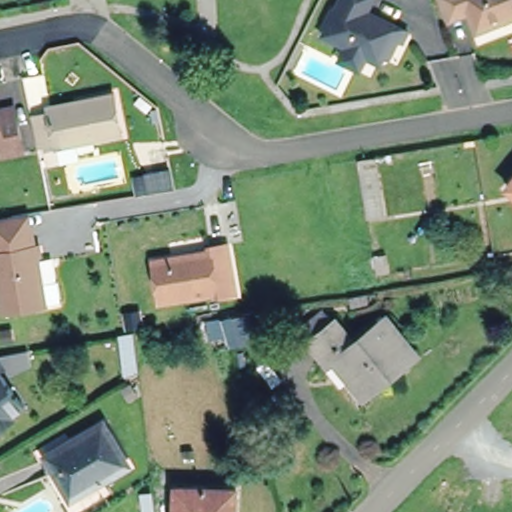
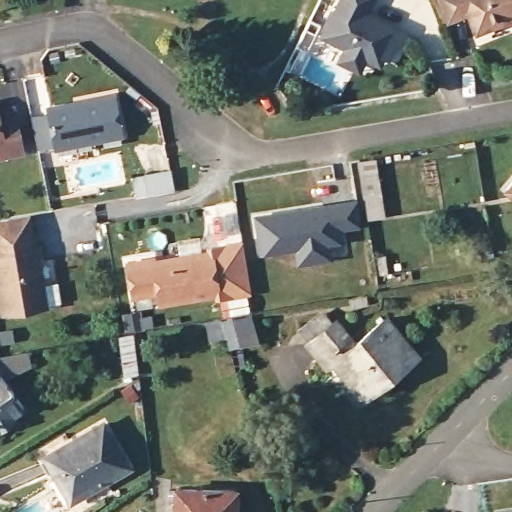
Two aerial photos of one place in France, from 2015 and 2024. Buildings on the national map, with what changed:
unchanged [(326,27),(329,20),(325,19),(334,1),(337,2),(338,0),(371,0),(369,3),(409,22),(402,37),(393,34),(387,50),(375,52),(361,45),(354,59),(330,46),(337,32),(326,27)]
unchanged [(470,15),(450,22),(442,0),(512,0),(512,19),(476,31),(470,15)]
unchanged [(49,103),(78,98),(114,91),(123,131),(44,146),(43,144),(38,145),(32,114),(50,110),(49,103)]
unchanged [(9,104),(18,150),(5,154),(0,155),(0,106),(9,104)]
unchanged [(367,217),(360,174),(357,156),(372,154),(375,171),(383,215),(367,217)]
unchanged [(135,172),(146,170),(172,165),(176,185),(150,190),(139,192),(135,172)]
unchanged [(512,181),(512,192),(506,187),(512,181)]
new [(359,199),(363,224),(343,226),(345,239),(330,241),(330,245),(298,250),(298,246),(263,252),(257,215),(359,199)]
unchanged [(9,310),(0,257),(0,219),(36,212),(39,229),(52,302),(9,310)]
unchanged [(212,245),(232,241),(241,291),(221,295),(220,291),(161,302),(154,260),(212,250),(212,245)]
unchanged [(335,323),(339,320),(357,341),(389,315),(422,355),(367,399),(336,361),(330,365),(311,343),(314,340),(304,328),(324,311),(335,323)]
unchanged [(227,347),(196,356),(185,323),(218,317),(227,347)]
unchanged [(132,332),(136,363),(119,365),(116,335),(126,333),(132,332)]
unchanged [(3,377),(1,380),(19,408),(6,416),(9,421),(0,428),(0,371),(3,377)]
unchanged [(57,479),(43,457),(102,421),(128,467),(77,496),(70,500),(57,479)]
unchanged [(231,490),(230,512),(169,512),(170,488),(231,490)]
new [(512,512),(501,512),(512,511),(512,512)]

